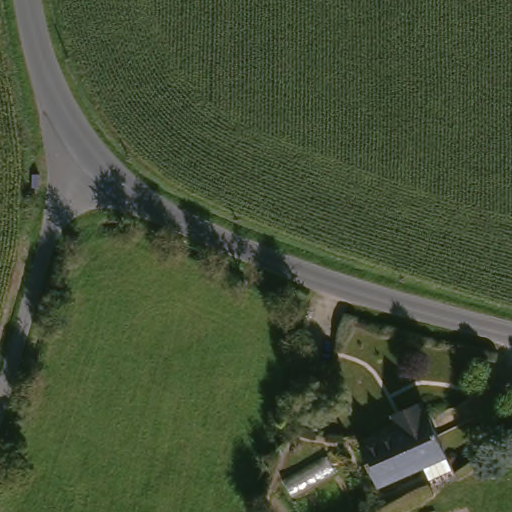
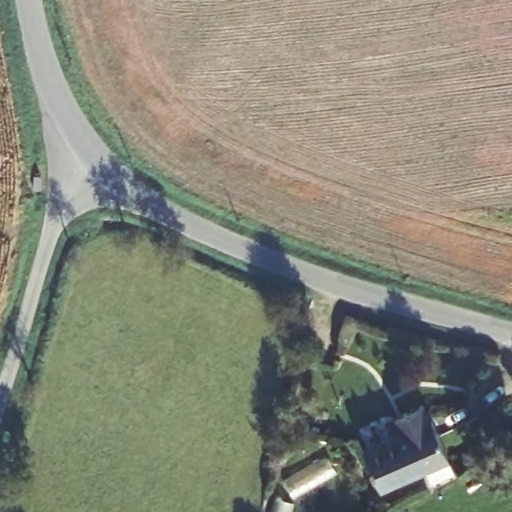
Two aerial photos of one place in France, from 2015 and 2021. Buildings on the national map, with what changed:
unchanged [(434,489),(426,471),(383,492),(365,455),(403,436),(393,418),(419,404),(428,422),(450,460),(445,463),(452,481),(434,489)]

